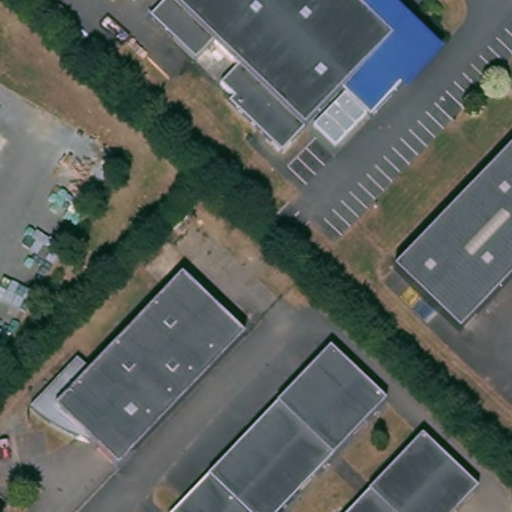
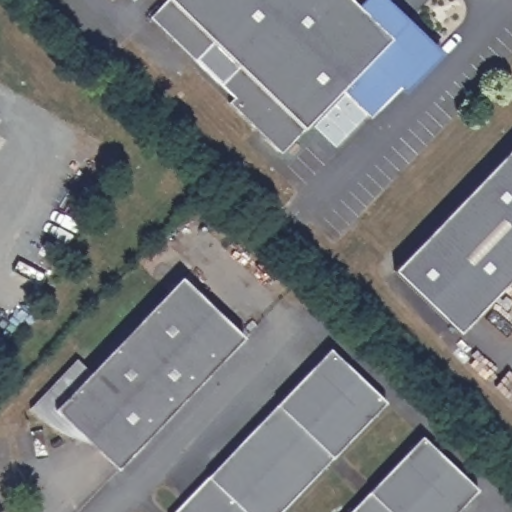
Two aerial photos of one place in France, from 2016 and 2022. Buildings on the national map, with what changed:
unchanged [(385,37),(396,25),(398,32),(402,41),(404,47),(405,57),(405,65),(403,71),(400,75),(397,72),(395,74),(403,80),(366,120),(335,94),(277,155),(220,105),(227,98),(214,86),(231,67),(206,44),(189,61),(143,18),(160,0),(345,0),(385,37)]
unchanged [(465,331),(433,301),(399,267),(512,149),(512,281),(465,331)]
unchanged [(240,339),(219,361),(133,451),(126,458),(105,435),(79,426),(59,410),(43,398),(89,348),(105,362),(183,282),(240,339)]
unchanged [(325,353),(383,407),(295,498),(282,512),(171,512),(237,445),(325,353)]
unchanged [(457,512),(352,512),(370,493),(422,437),(479,490),(457,512)]

